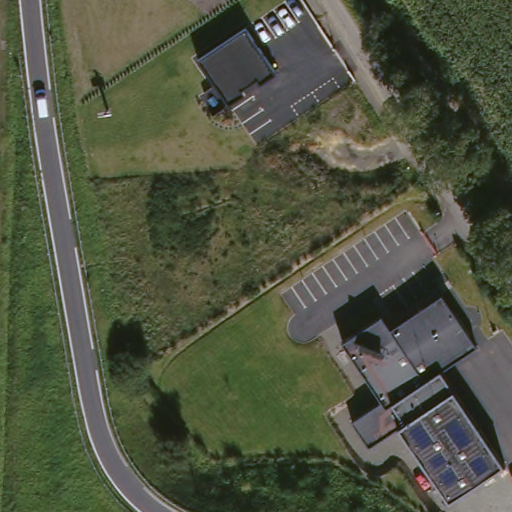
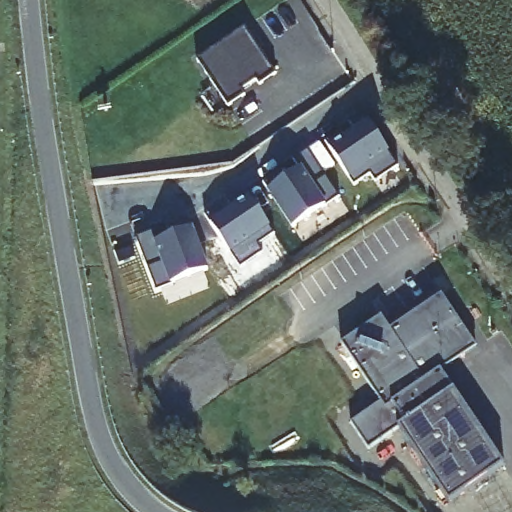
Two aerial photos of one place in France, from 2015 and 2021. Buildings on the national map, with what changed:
unchanged [(244,20),(281,74),(226,106),(193,55),(244,20)]
new [(344,134),(349,140),(358,134),(352,126),(365,117),(401,170),(379,185),(372,174),(354,185),(327,146),(344,134)]
new [(284,174),(289,181),(301,172),(295,163),(310,153),(340,199),(326,209),(325,208),(294,229),(264,186),(284,174)]
new [(219,209),(225,218),(234,212),(230,206),(248,194),(277,237),(260,248),(265,256),(242,271),(207,218),(219,209)]
new [(151,229),(155,240),(170,234),(166,226),(188,218),(207,268),(172,282),(172,283),(155,290),(135,235),(151,229)]
unchanged [(478,347),(444,368),(504,461),(449,499),(401,427),(369,446),(353,421),(381,402),(341,344),(381,316),(389,328),(441,294),(478,347)]

